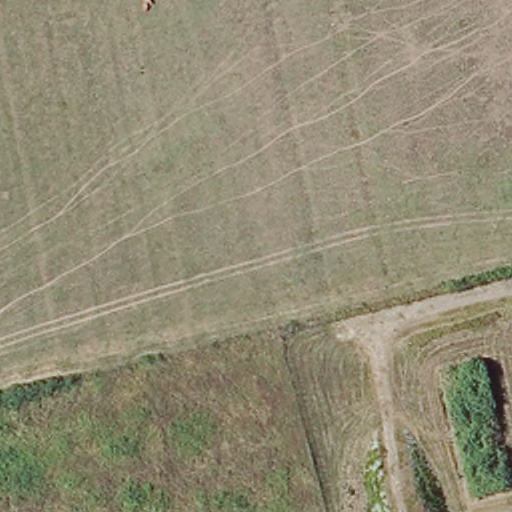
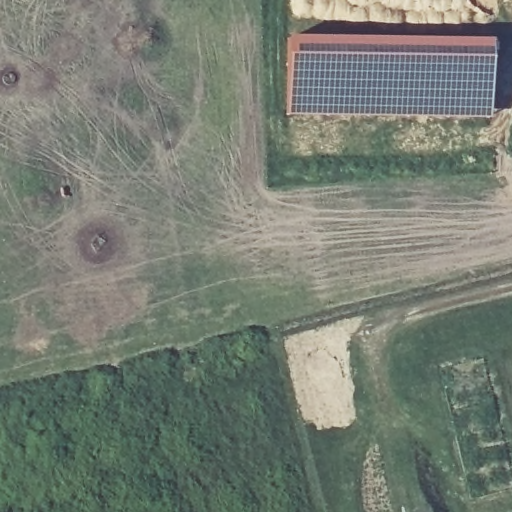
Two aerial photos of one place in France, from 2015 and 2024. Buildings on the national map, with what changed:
new [(492,38),(491,119),(286,116),(285,36),(492,38)]

